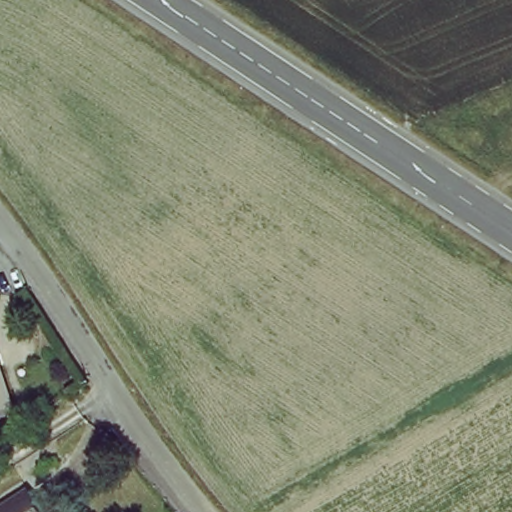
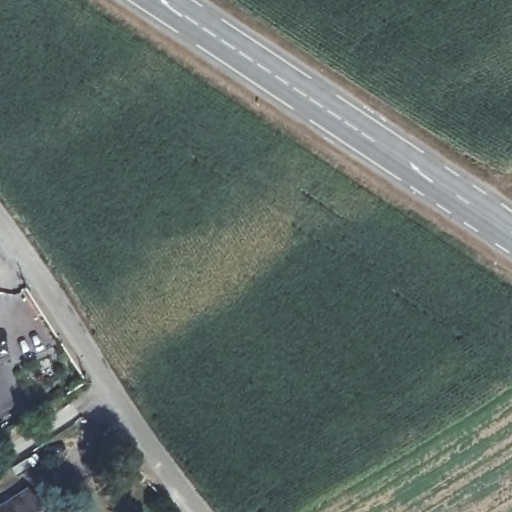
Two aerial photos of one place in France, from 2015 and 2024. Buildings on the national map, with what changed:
unchanged [(0,412),(0,361),(15,407),(0,412)]
unchanged [(47,512),(0,512),(0,508),(30,487),(47,512)]

